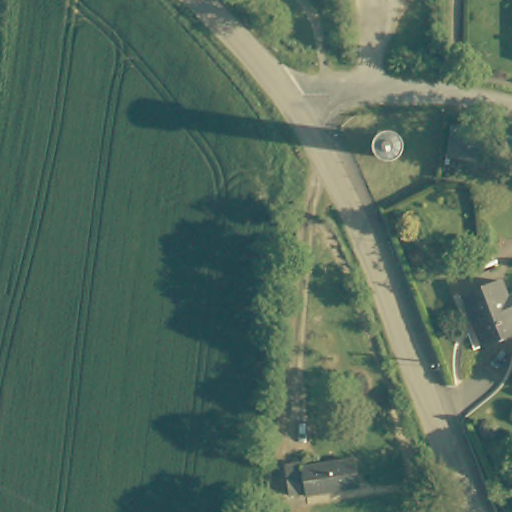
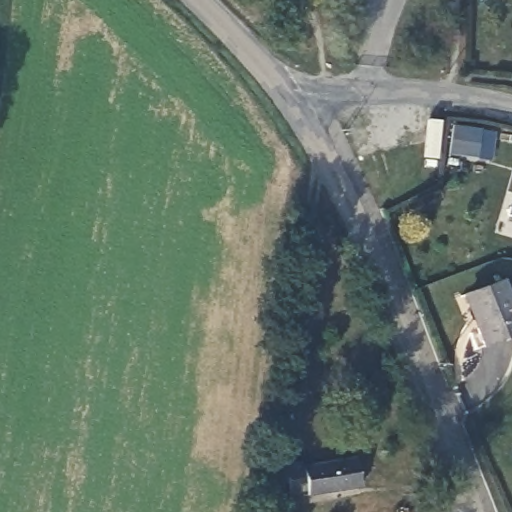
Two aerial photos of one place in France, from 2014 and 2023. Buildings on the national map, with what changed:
new [(453,124),(498,128),(494,160),(449,154),(453,124)]
new [(512,216),(508,215),(512,200),(512,216)]
unchanged [(479,325),(467,291),(501,279),(508,297),(512,295),(512,334),(479,347),(473,327),(479,325)]
unchanged [(292,463),(307,459),(309,468),(361,457),(367,485),(314,497),(313,492),(299,494),(292,463)]

